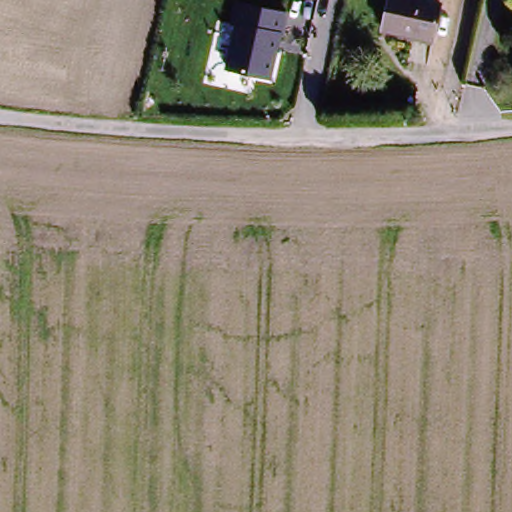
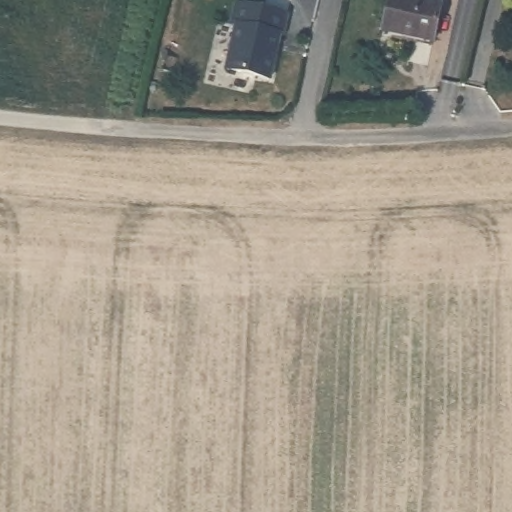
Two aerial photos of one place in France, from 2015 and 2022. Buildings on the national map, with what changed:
unchanged [(440,6),(431,42),(382,30),(390,0),(414,0),(440,6)]
unchanged [(273,82),(226,72),(239,3),(287,13),(273,82)]

